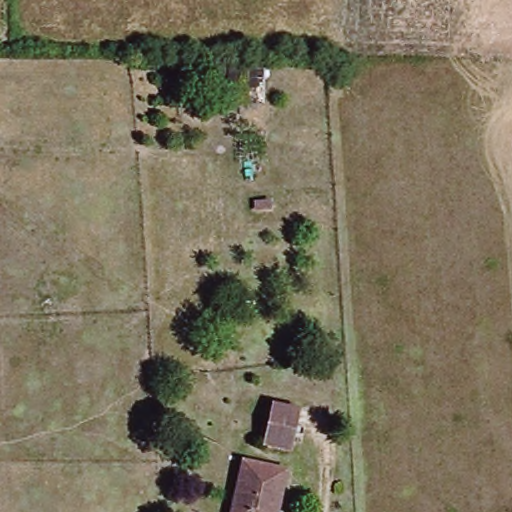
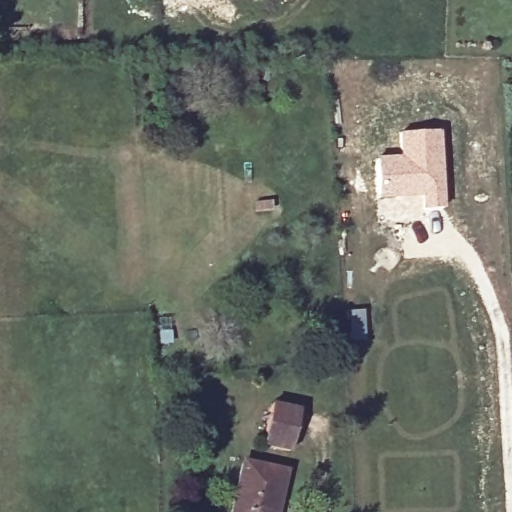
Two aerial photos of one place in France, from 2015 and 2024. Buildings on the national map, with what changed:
new [(398,154),(398,132),(439,130),(444,207),(421,209),(420,197),(377,198),(376,156),(398,154)]
unchanged [(264,445),(273,405),(299,411),(289,451),(264,445)]
unchanged [(288,474),(280,512),(234,512),(243,466),(288,474)]

